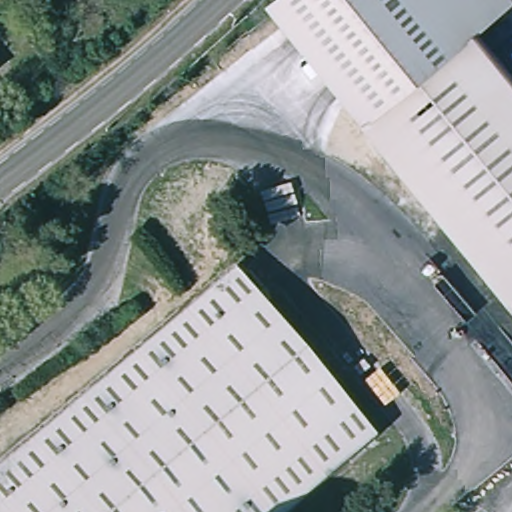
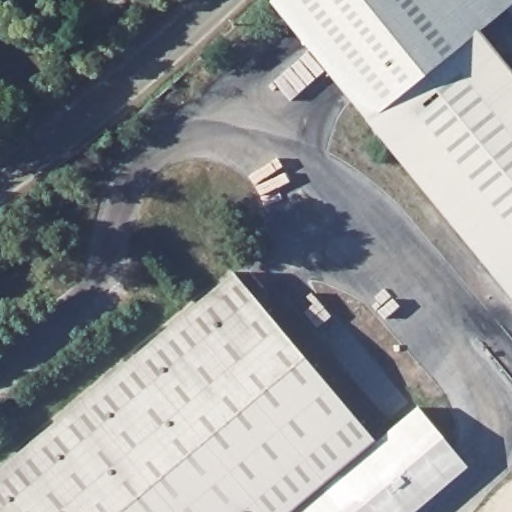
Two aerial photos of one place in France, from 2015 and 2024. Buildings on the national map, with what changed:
unchanged [(275,4),(272,0),(505,0),(473,26),(512,74),(512,294),(421,182),(275,4)]
unchanged [(378,442),(296,512),(0,512),(0,473),(238,273),(378,442)]
new [(412,512),(296,512),(378,442),(375,439),(415,406),(466,466),(412,512)]

